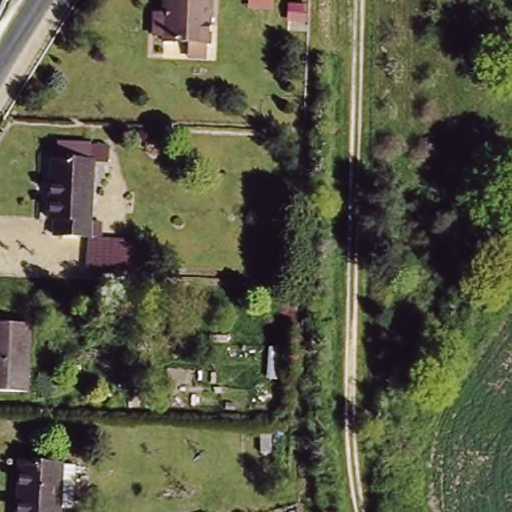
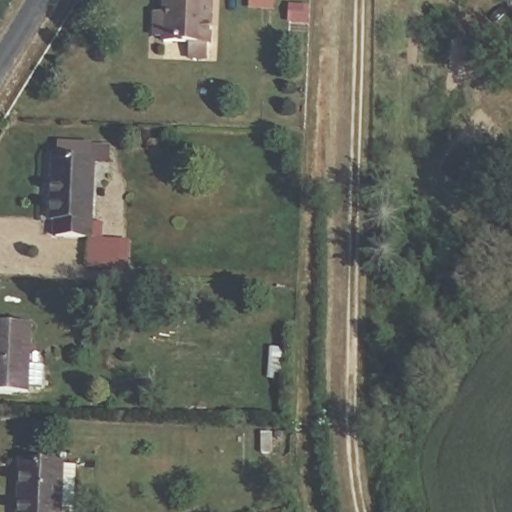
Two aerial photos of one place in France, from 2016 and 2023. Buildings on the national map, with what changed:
unchanged [(152,6),(167,7),(168,0),(216,0),(211,66),(186,64),(188,47),(163,45),(165,36),(148,34),(152,6)]
unchanged [(245,0),(277,0),(276,11),(245,7),(245,0)]
unchanged [(52,236),(49,157),(61,158),(60,140),(113,145),(111,163),(97,160),(96,236),(52,236)]
unchanged [(85,242),(123,244),(123,272),(83,269),(85,242)]
unchanged [(28,387),(0,386),(0,321),(34,323),(28,387)]
unchanged [(271,343),(290,346),(286,381),(269,379),(271,343)]
unchanged [(91,465),(90,506),(68,506),(68,512),(16,512),(15,462),(91,465)]

